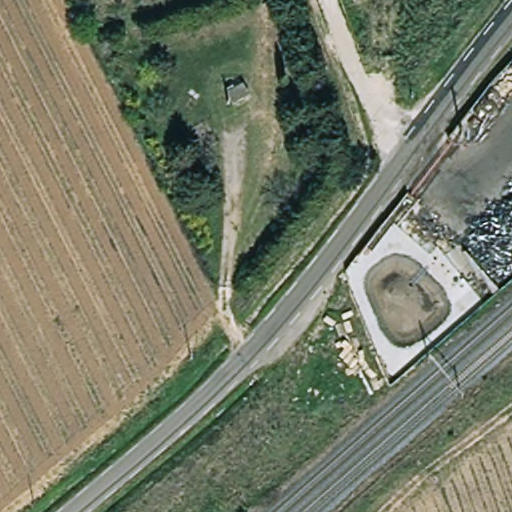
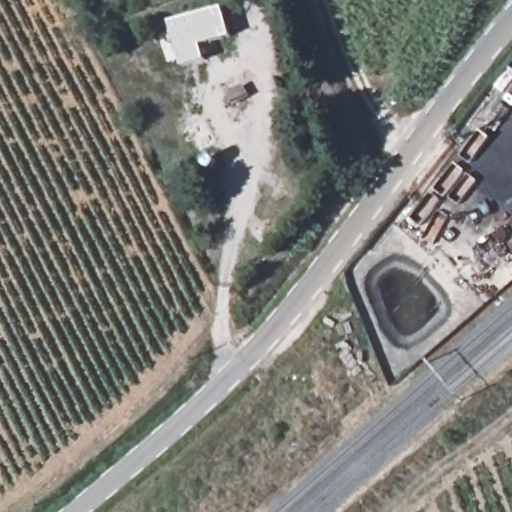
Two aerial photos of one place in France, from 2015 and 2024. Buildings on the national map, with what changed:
new [(223,7),(231,37),(201,45),(205,60),(182,67),(168,22),(223,7)]
unchanged [(219,92),(243,82),(252,101),(231,108),(219,92)]

